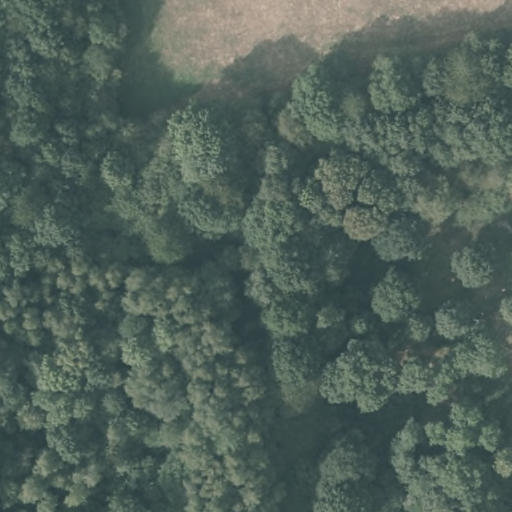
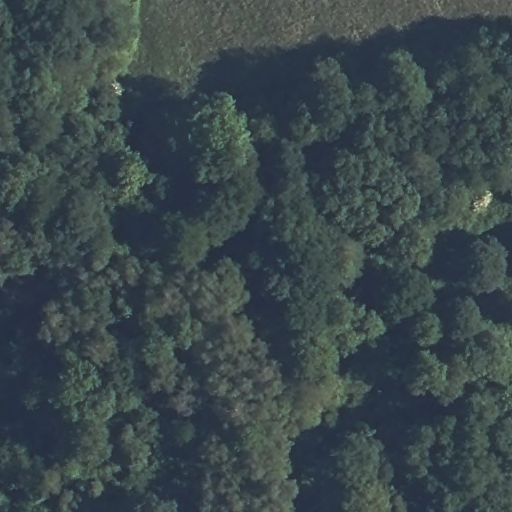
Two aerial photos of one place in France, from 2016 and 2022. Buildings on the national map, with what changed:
unchanged [(399,244),(349,246),(347,215),(397,211),(399,244)]

